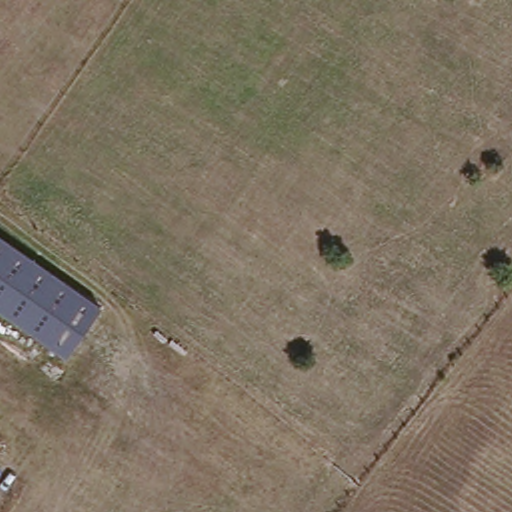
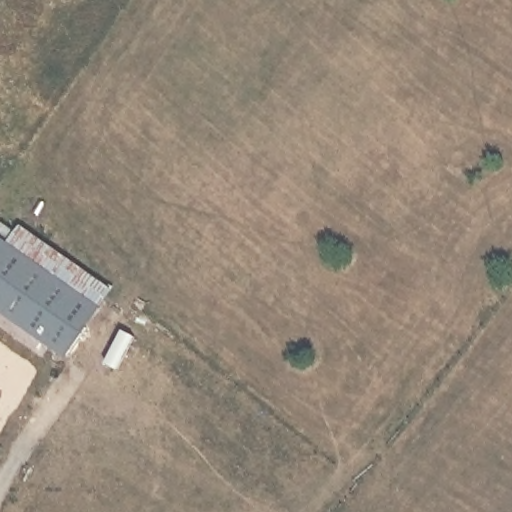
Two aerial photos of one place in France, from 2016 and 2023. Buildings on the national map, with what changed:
unchanged [(68,358),(0,311),(0,233),(104,307),(68,358)]

